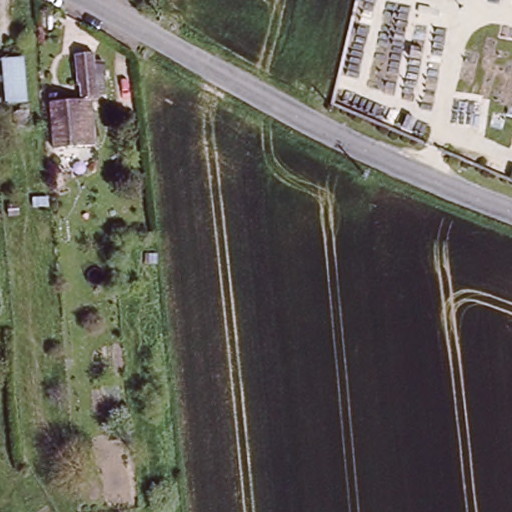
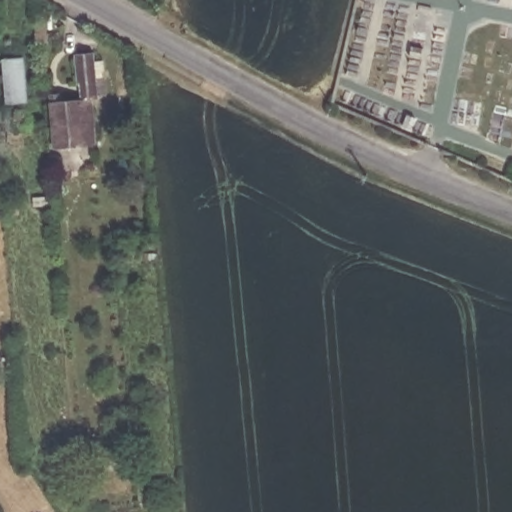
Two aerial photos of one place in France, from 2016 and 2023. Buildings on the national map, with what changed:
unchanged [(70,51),(90,50),(100,141),(64,144),(60,96),(74,95),(70,51)]
unchanged [(6,98),(1,57),(10,56),(24,54),(29,95),(15,97),(6,98)]
unchanged [(27,135),(17,136),(15,123),(25,122),(27,135)]
unchanged [(34,510),(48,503),(53,512),(35,512),(34,510)]

